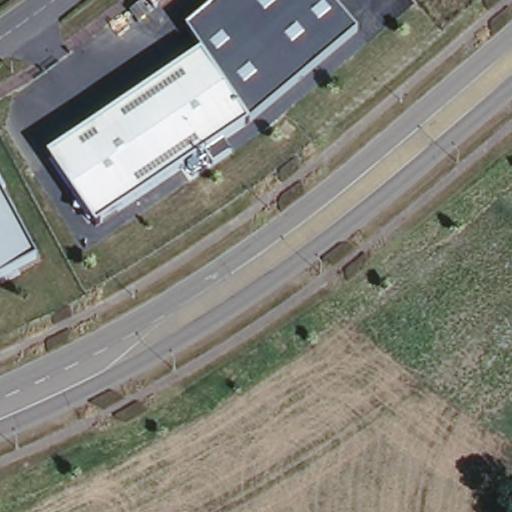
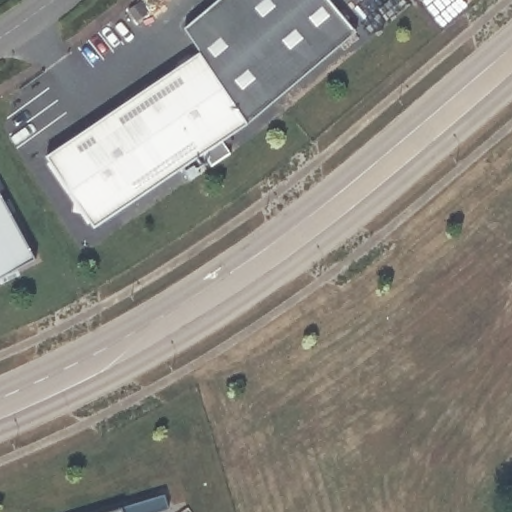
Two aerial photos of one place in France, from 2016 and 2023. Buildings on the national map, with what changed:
unchanged [(219,0),(333,0),(359,30),(248,124),(202,54),(186,28),(219,0)]
unchanged [(202,54),(248,124),(97,223),(49,157),(202,54)]
unchanged [(0,279),(0,192),(36,262),(0,279)]
new [(161,512),(107,512),(124,507),(165,495),(170,509),(161,512)]

